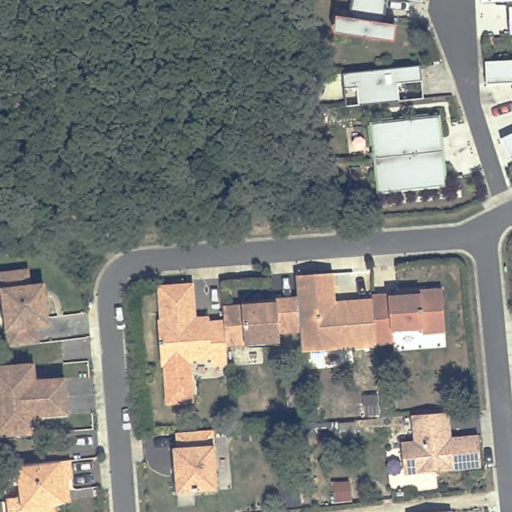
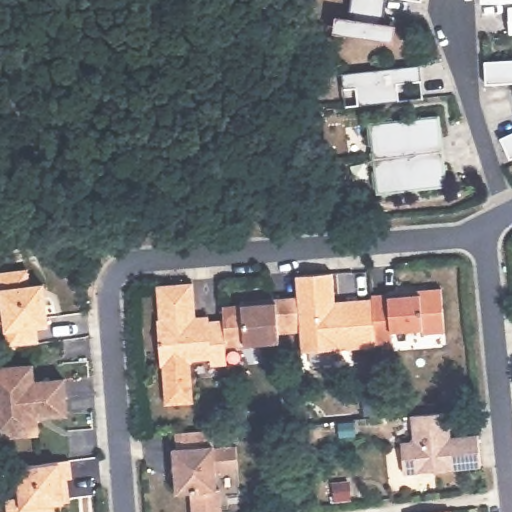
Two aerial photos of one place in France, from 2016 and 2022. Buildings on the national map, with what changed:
unchanged [(381,21),(400,22),(397,44),(331,38),(333,15),(350,18),(351,0),(383,0),(382,2),(381,21)]
unchanged [(507,29),(510,4),(512,4),(512,29),(507,29)]
unchanged [(492,79),(491,56),(512,58),(512,80),(492,79)]
unchanged [(422,99),(345,105),(342,72),(420,65),(422,99)]
unchanged [(438,117),(445,185),(378,192),(371,125),(438,117)]
unchanged [(511,154),(504,132),(512,130),(512,154),(511,154)]
unchanged [(0,273),(26,270),(29,286),(42,284),(47,325),(36,326),(38,343),(8,347),(0,282),(0,273)]
unchanged [(332,272),(335,302),(372,300),(375,343),(375,346),(301,351),(300,332),(297,297),(296,286),(295,275),(332,272)]
unchanged [(226,352),(226,363),(210,365),(210,358),(192,360),(189,364),(192,402),(166,405),(163,366),(160,366),(156,320),(159,320),(156,286),(192,283),(194,309),(190,312),(191,317),(208,316),(209,321),(224,320),(225,346),(226,352)]
unchanged [(422,331),(421,326),(391,328),(392,342),(375,343),(372,300),(372,295),(388,293),(387,292),(408,290),(408,295),(426,293),(428,286),(441,285),(445,329),(422,331)]
unchanged [(241,305),(241,301),(297,297),(300,332),(278,333),(279,342),(225,346),(224,320),(222,306),(241,305)]
unchanged [(37,382),(62,379),(66,414),(41,417),(37,422),(39,434),(0,439),(0,370),(30,366),(31,377),(37,382)]
unchanged [(447,430),(443,430),(445,438),(476,436),(479,467),(402,473),(400,442),(412,441),(410,415),(446,412),(447,430)]
unchanged [(210,430),(212,430),(216,490),(176,493),(175,475),(177,475),(176,467),(174,467),(173,449),(176,448),(175,433),(210,430)]
unchanged [(20,496),(16,466),(69,460),(71,478),(66,479),(69,501),(63,502),(52,503),(53,512),(9,512),(7,498),(20,496)]

